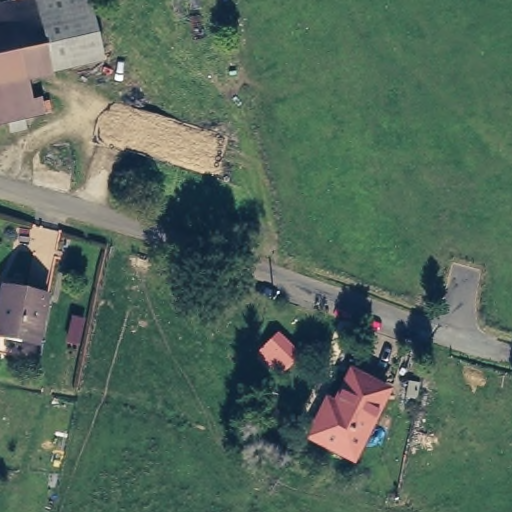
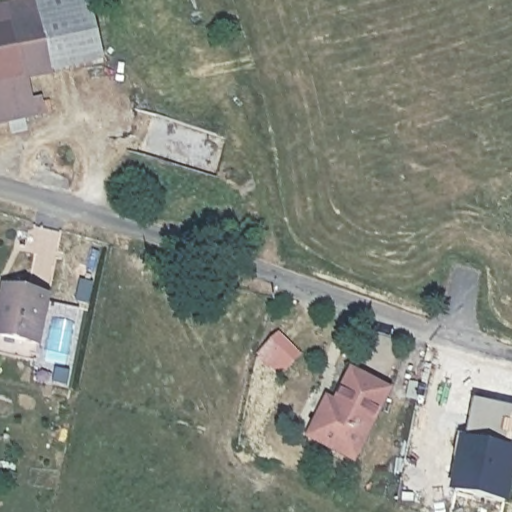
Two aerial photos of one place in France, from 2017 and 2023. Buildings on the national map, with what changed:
unchanged [(25,1),(27,0),(28,2),(44,71),(45,74),(42,74),(29,77),(27,78),(27,80),(31,99),(32,101),(33,101),(38,100),(40,100),(41,101),(42,111),(43,112),(41,113),(22,117),(20,118),(20,120),(22,126),(22,128),(20,129),(7,131),(5,132),(5,130),(3,123),(3,121),(1,121),(0,122),(0,6),(25,1)]
unchanged [(45,74),(44,71),(28,2),(27,0),(80,0),(95,61),(45,74)]
unchanged [(2,288),(3,286),(5,286),(46,296),(48,296),(47,298),(38,341),(38,343),(36,342),(2,335),(0,334),(0,302),(2,288)]
new [(260,355),(259,354),(278,335),(297,356),(276,377),(257,358),(260,355)]
unchanged [(307,437),(317,418),(318,417),(320,417),(323,419),(325,420),(325,418),(347,372),(348,371),(350,372),(386,391),(387,392),(387,394),(353,460),(352,462),(350,461),(308,440),(306,439),(307,437)]
new [(455,487),(472,399),(512,406),(512,441),(501,496),(455,487)]

